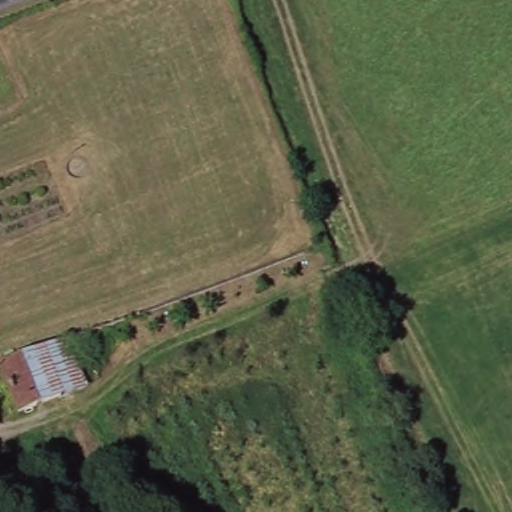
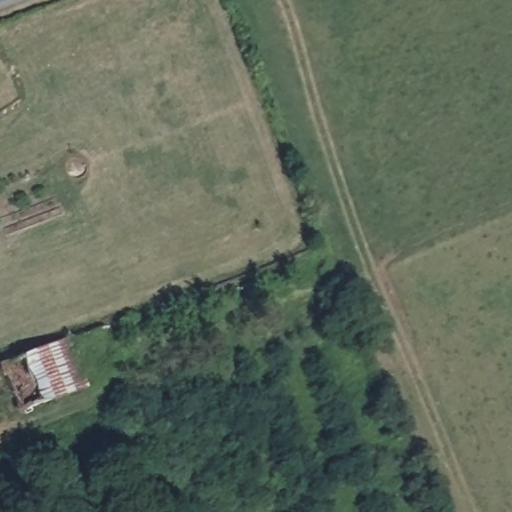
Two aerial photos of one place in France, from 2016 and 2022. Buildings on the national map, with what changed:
unchanged [(68,340),(83,380),(85,386),(60,395),(42,350),(68,340)]
unchanged [(42,350),(60,395),(17,411),(0,366),(42,350)]

